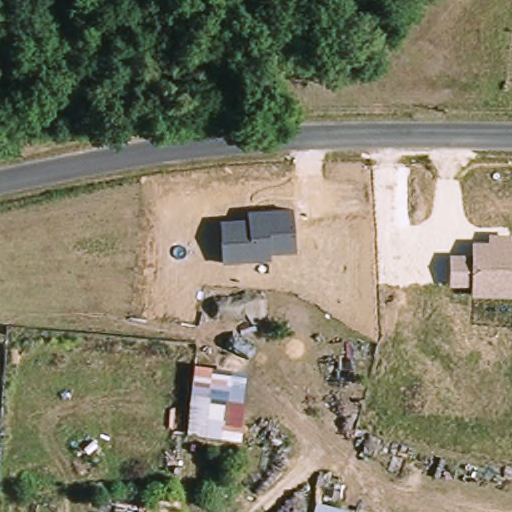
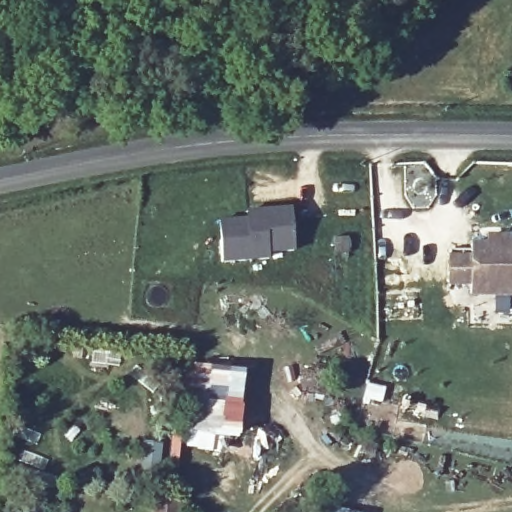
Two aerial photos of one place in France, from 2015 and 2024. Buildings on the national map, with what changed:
unchanged [(245,218),(245,212),(291,207),(294,252),(269,254),(269,260),(224,263),(220,222),(245,218)]
unchanged [(468,239),(512,240),(512,290),(467,289),(467,277),(447,277),(448,253),(468,253),(468,239)]
unchanged [(244,375),(240,444),(182,434),(190,365),(244,375)]
unchanged [(348,511),(348,512),(305,512),(309,501),(348,511)]
unchanged [(154,512),(154,507),(178,509),(177,512),(154,512)]

